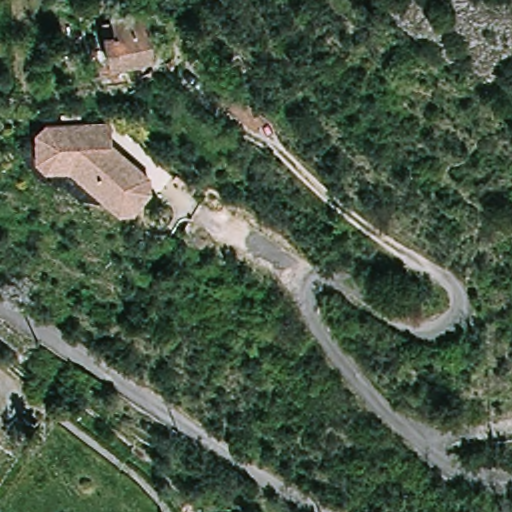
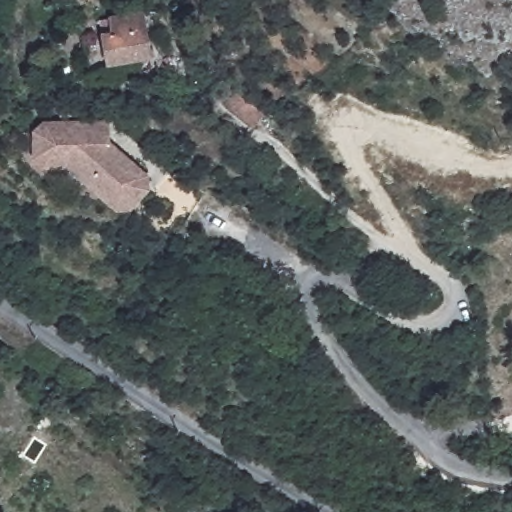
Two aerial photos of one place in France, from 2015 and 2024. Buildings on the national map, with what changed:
unchanged [(146,12),(155,56),(109,65),(103,38),(100,21),(115,18),(122,16),(146,12)]
unchanged [(239,90),(268,112),(257,125),(227,104),(239,90)]
unchanged [(153,182),(154,196),(136,217),(122,218),(72,175),(48,175),(38,165),(38,138),(49,128),(114,126),(114,148),(153,182)]

